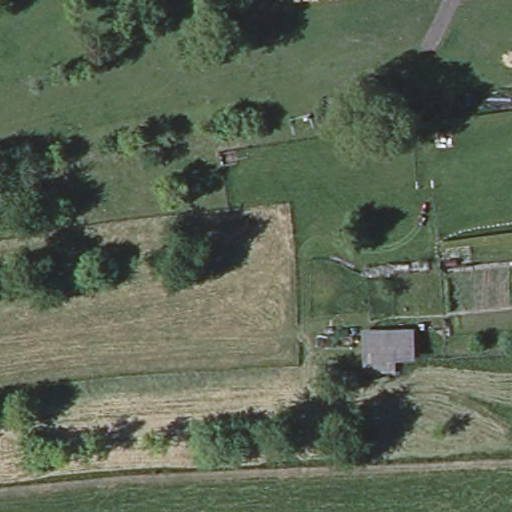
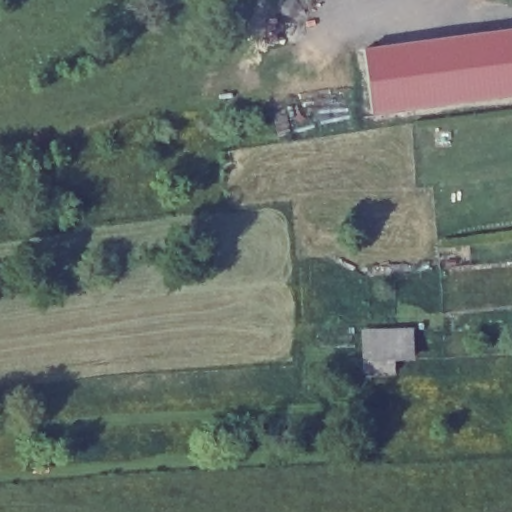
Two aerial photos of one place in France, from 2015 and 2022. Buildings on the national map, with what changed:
new [(512,27),(512,92),(375,110),(366,46),(512,27)]
unchanged [(409,330),(407,358),(394,359),(393,374),(360,374),(358,360),(357,334),(409,330)]

